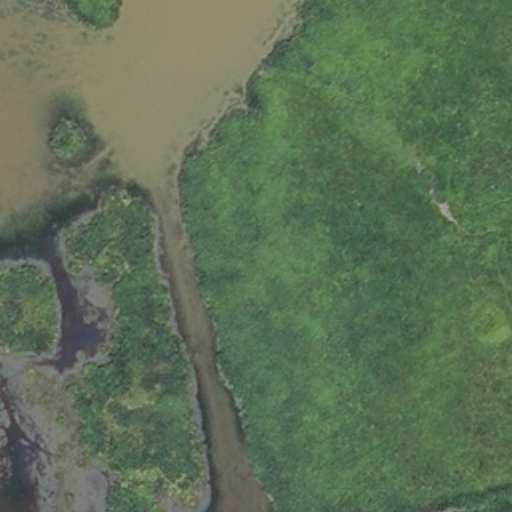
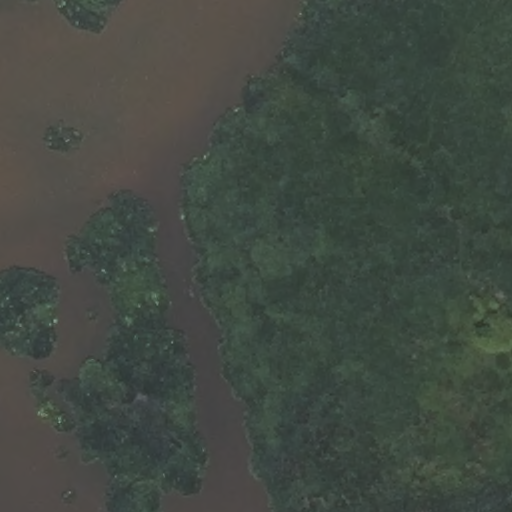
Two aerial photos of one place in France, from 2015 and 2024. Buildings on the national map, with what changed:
[]

